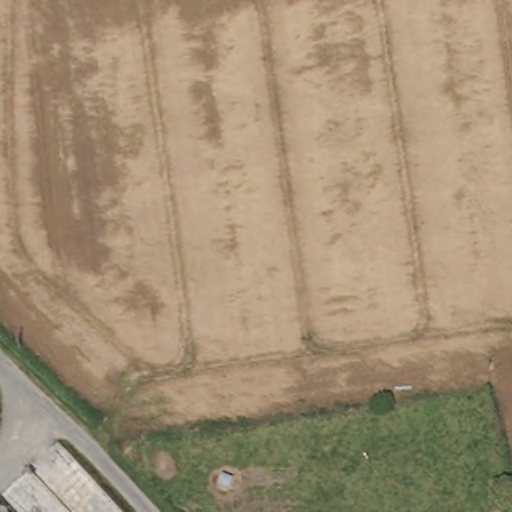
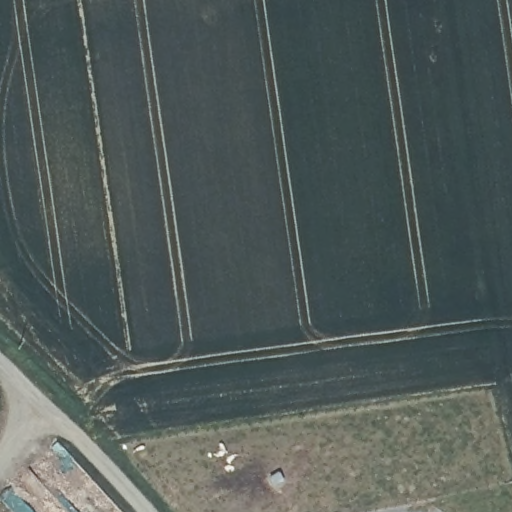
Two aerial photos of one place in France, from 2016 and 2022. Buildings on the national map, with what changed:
[]

